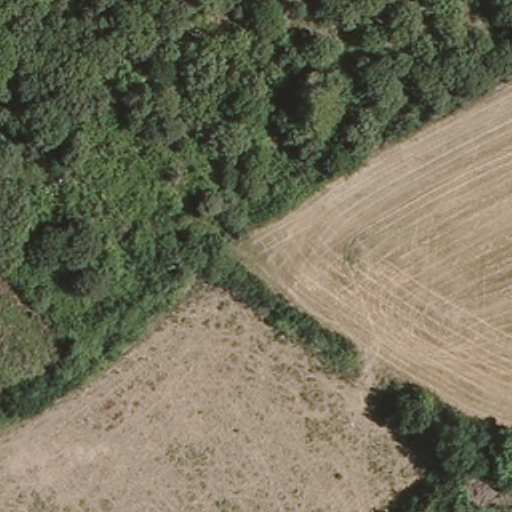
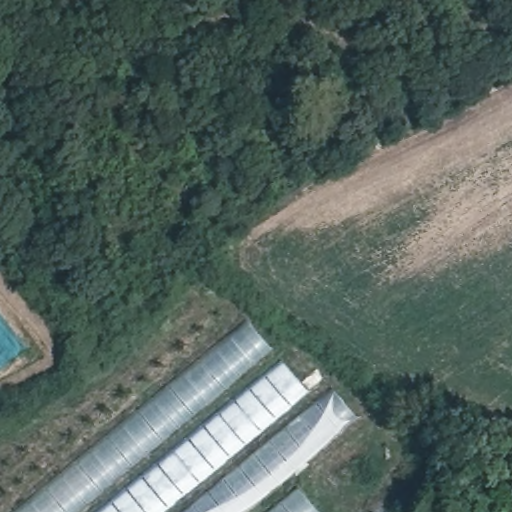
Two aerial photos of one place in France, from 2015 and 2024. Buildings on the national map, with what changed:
new [(316,404),(333,390),(356,418),(243,512),(17,512),(246,320),(316,404)]
new [(317,512),(274,512),(299,491),(317,512)]

